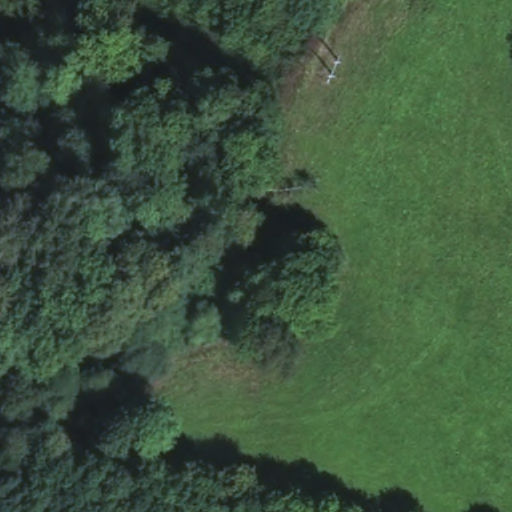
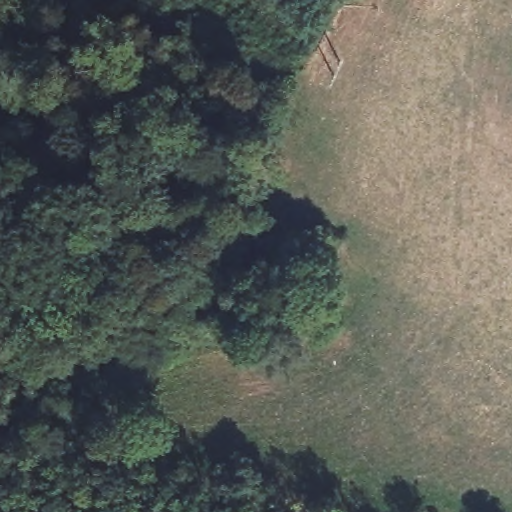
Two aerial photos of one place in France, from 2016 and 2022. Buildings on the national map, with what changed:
[]

